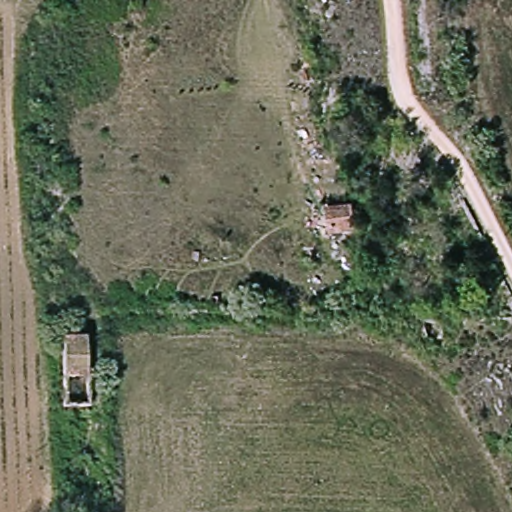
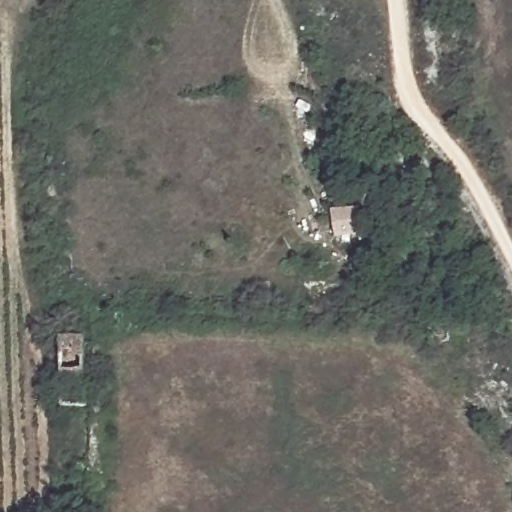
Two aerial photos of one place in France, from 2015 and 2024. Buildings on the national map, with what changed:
unchanged [(332,240),(330,211),(359,210),(362,237),(332,240)]
unchanged [(79,334),(80,375),(57,376),(55,334),(79,334)]

